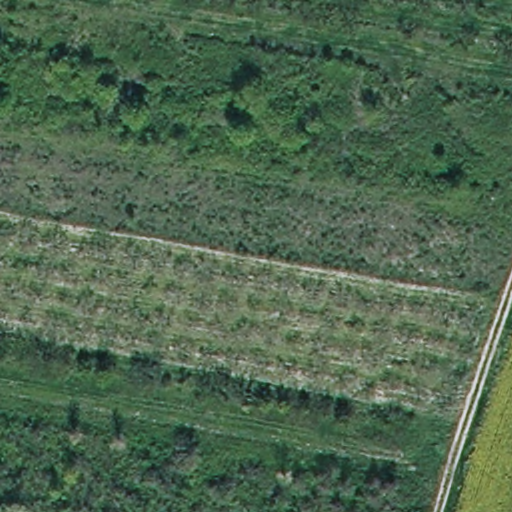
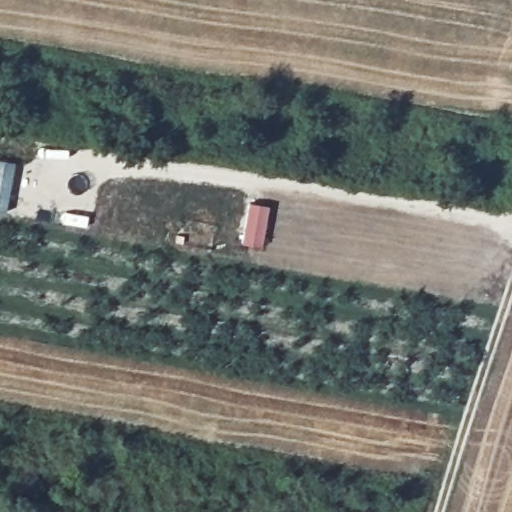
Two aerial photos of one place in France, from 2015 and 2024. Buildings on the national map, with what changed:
new [(5,211),(0,211),(0,159),(14,162),(5,211)]
new [(262,246),(241,243),(247,201),(269,205),(262,246)]

